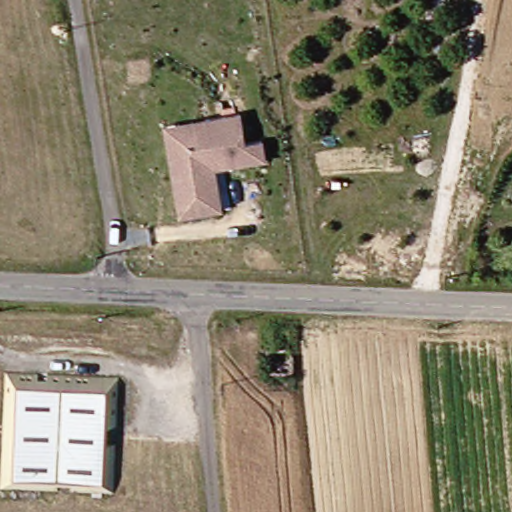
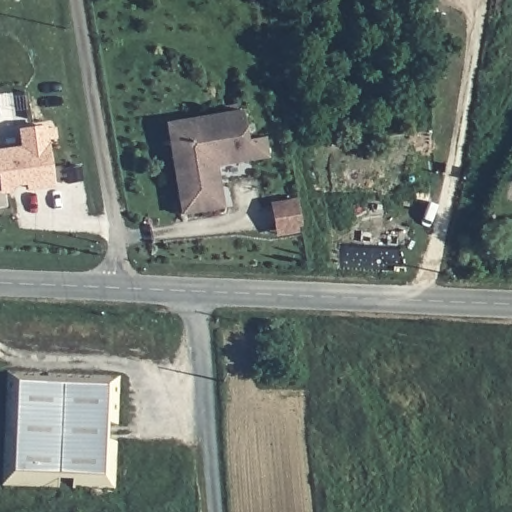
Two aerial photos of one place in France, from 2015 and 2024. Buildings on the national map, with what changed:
unchanged [(249,133),(265,130),(270,149),(218,159),(226,201),(183,209),(172,137),(168,116),(209,110),(245,103),(249,133)]
new [(53,187),(0,195),(0,150),(20,147),(17,131),(45,127),(53,187)]
unchanged [(450,255),(475,254),(474,273),(472,279),(450,278),(450,255)]
unchanged [(303,339),(305,365),(280,366),(278,340),(303,339)]
unchanged [(135,375),(130,492),(17,489),(19,374),(135,375)]

